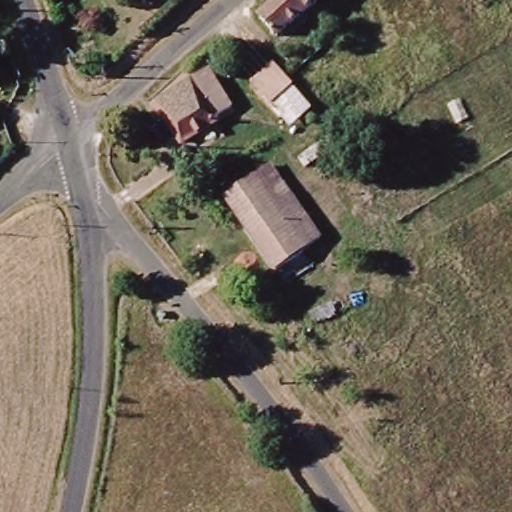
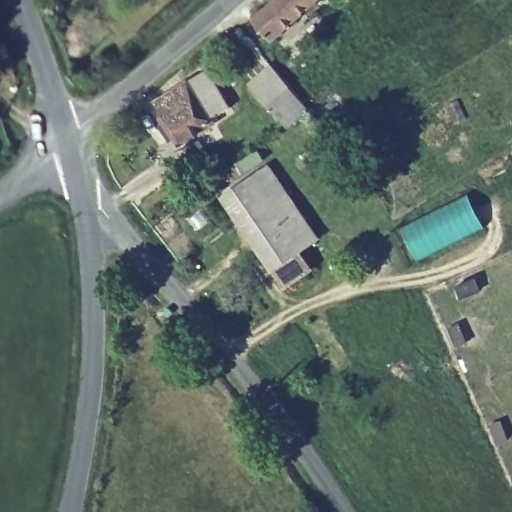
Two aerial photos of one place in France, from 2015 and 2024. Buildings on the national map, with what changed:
unchanged [(265,0),(303,0),(265,33),(249,14),(265,0)]
unchanged [(0,51),(0,38),(5,48),(0,51)]
unchanged [(312,108),(291,127),(251,83),(272,65),(312,108)]
unchanged [(210,107),(215,112),(179,137),(155,103),(207,66),(227,94),(210,107)]
unchanged [(279,284),(268,266),(220,192),(265,162),(315,235),(295,248),(307,265),(279,284)]
new [(487,228),(420,262),(402,227),(470,193),(487,228)]

